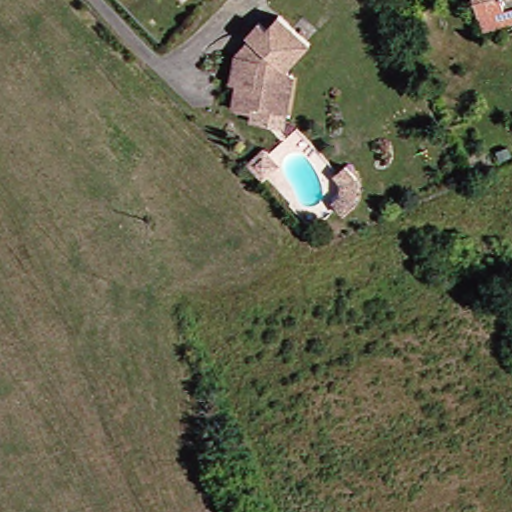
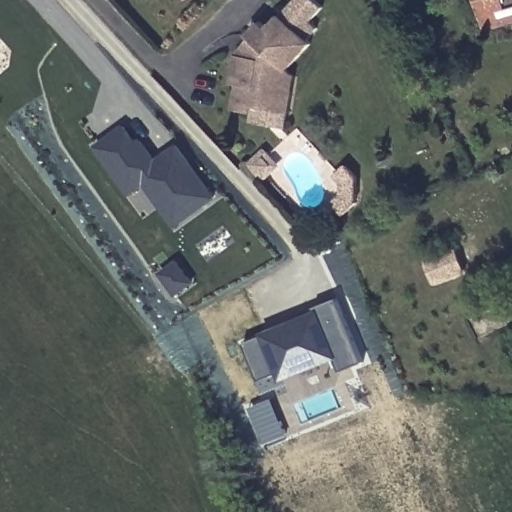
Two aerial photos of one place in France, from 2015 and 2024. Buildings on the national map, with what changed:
unchanged [(471,0),(512,0),(512,18),(478,27),(475,15),(471,0)]
unchanged [(285,72),(275,124),(243,118),(246,103),(241,102),(240,108),(222,105),(227,80),(220,79),(225,51),(234,52),(246,39),(238,32),(249,19),(257,26),(270,12),(300,39),(277,66),(285,72)]
new [(163,210),(144,184),(130,195),(96,148),(125,127),(136,144),(140,140),(159,167),(165,162),(162,158),(177,147),(215,198),(190,216),(175,227),(163,210)]
new [(165,162),(159,167),(156,162),(162,158),(165,162)]
unchanged [(355,205),(344,215),(334,204),(341,197),(342,186),(335,177),(347,167),(357,178),(355,205)]
new [(175,295),(161,274),(177,263),(191,283),(175,295)]
new [(258,382),(243,343),(287,326),(317,314),(319,318),(315,307),(338,298),(364,362),(341,372),(334,357),(282,378),(261,387),(258,382)]

